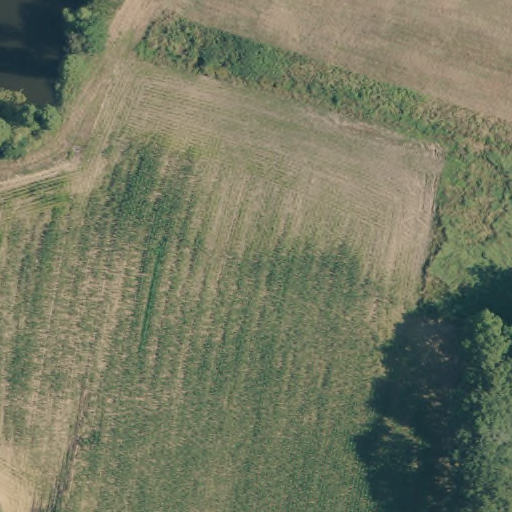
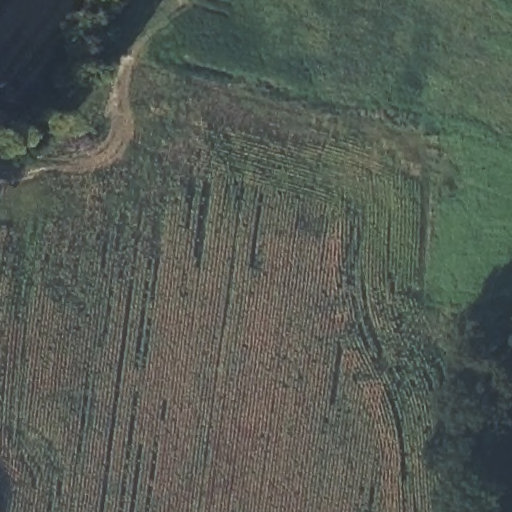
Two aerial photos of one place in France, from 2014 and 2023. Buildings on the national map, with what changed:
[]

